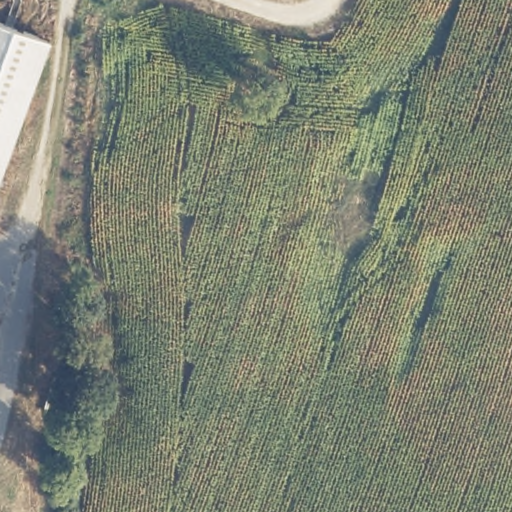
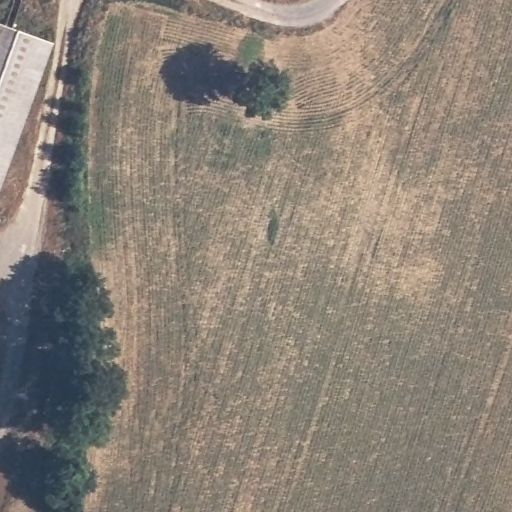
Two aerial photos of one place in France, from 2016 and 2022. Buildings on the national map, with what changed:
unchanged [(0,185),(0,22),(51,40),(0,185)]

